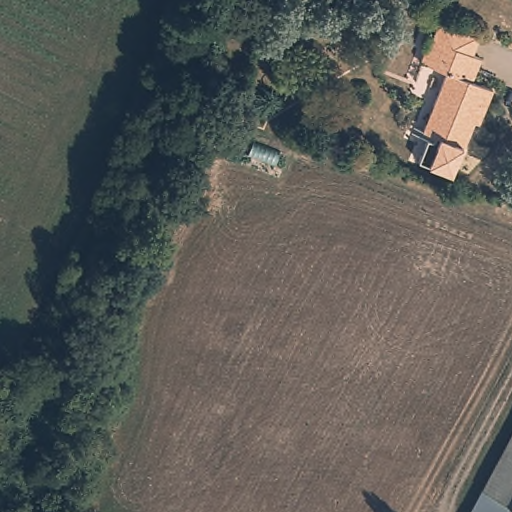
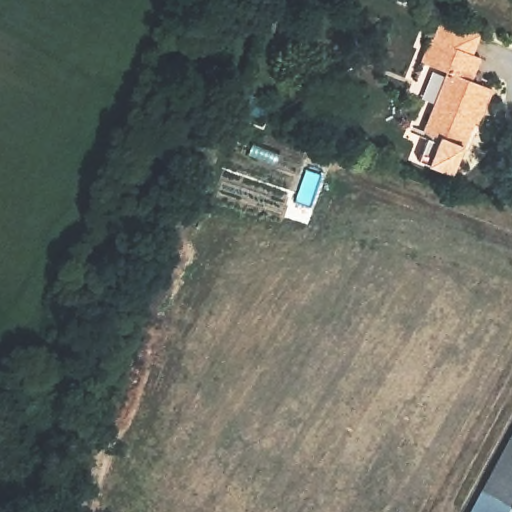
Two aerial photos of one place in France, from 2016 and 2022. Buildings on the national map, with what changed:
unchanged [(473,122),(463,148),(462,148),(451,175),(418,161),(429,135),(422,132),(447,73),(420,62),(430,38),(432,39),(440,19),(480,35),(472,55),(480,58),(471,81),(492,89),(486,105),(478,124),(473,122)]
unchanged [(482,492),(512,437),(512,508),(482,492)]
unchanged [(512,508),(512,512),(470,512),(482,492),(512,508)]

